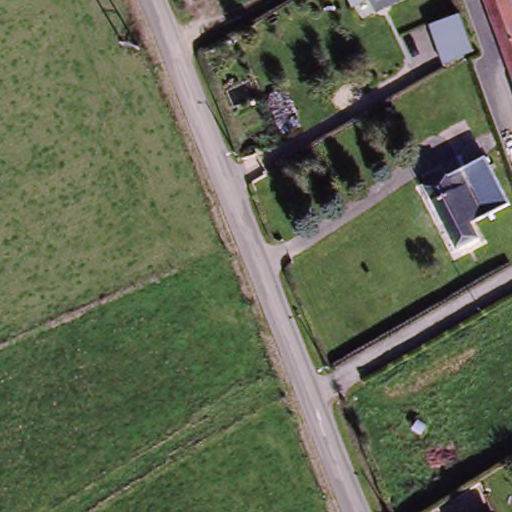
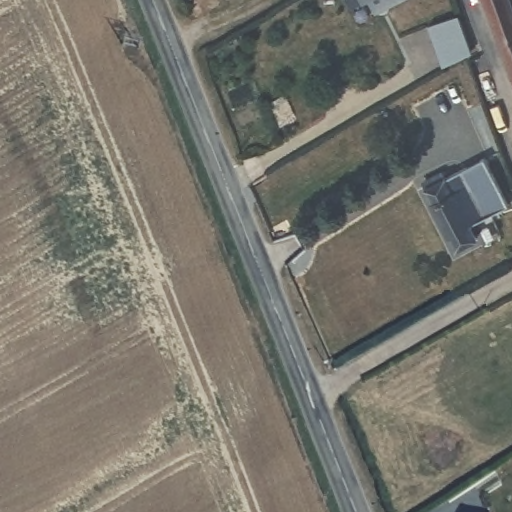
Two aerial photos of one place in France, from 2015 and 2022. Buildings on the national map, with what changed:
unchanged [(479,0),(505,0),(512,18),(512,85),(479,0)]
unchanged [(477,50),(445,62),(431,27),(464,14),(477,50)]
unchanged [(480,152),(505,202),(473,220),(481,234),(462,245),(430,182),(480,152)]

